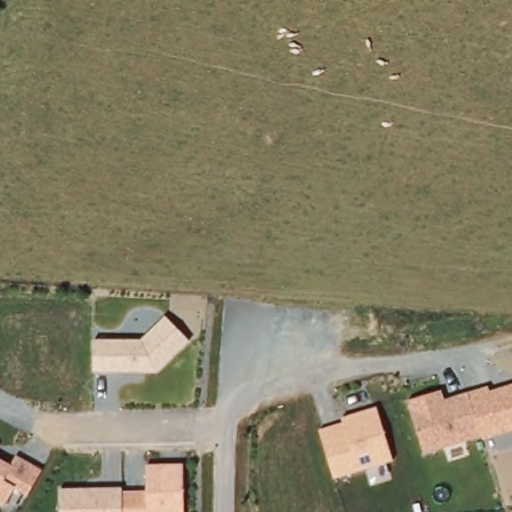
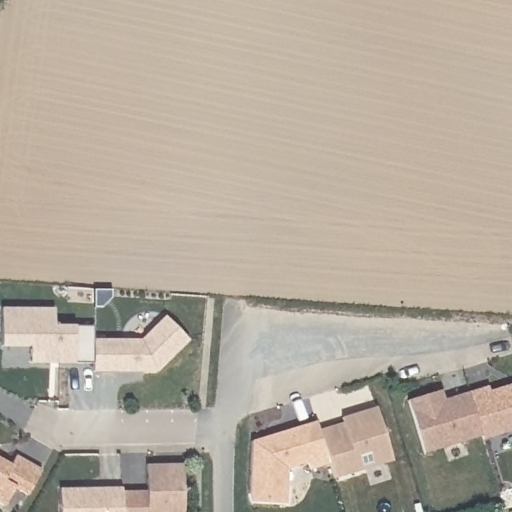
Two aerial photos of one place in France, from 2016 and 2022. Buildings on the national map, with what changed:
new [(30,362),(30,346),(1,346),(2,307),(55,307),(55,325),(94,326),(94,340),(94,363),(30,362)]
unchanged [(140,340),(164,317),(189,341),(158,372),(93,371),(94,340),(140,340)]
unchanged [(487,386),(489,391),(512,384),(512,432),(482,441),(480,437),(469,392),(487,386)]
unchanged [(423,453),(407,400),(442,389),(446,398),(469,392),(480,437),(423,453)]
unchanged [(343,423),(342,418),(376,407),(392,460),(334,479),(319,430),(343,423)]
new [(311,470),(309,462),(288,468),(285,503),(250,502),(253,440),(316,421),(319,430),(329,465),(311,470)]
unchanged [(14,455),(41,470),(27,497),(13,490),(5,506),(0,504),(0,457),(10,462),(14,455)]
unchanged [(122,490),(146,491),(146,466),(183,465),(184,512),(60,512),(60,488),(121,487),(122,490)]

